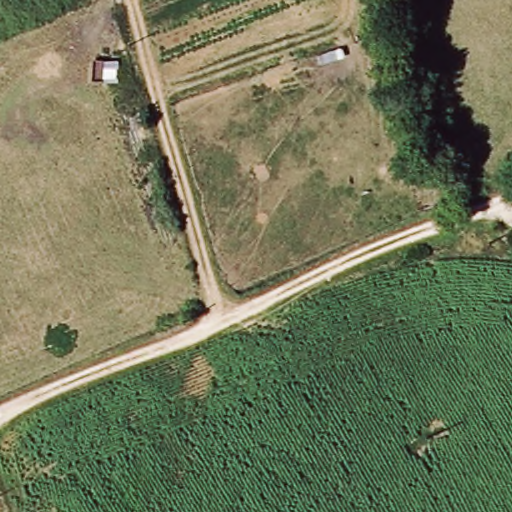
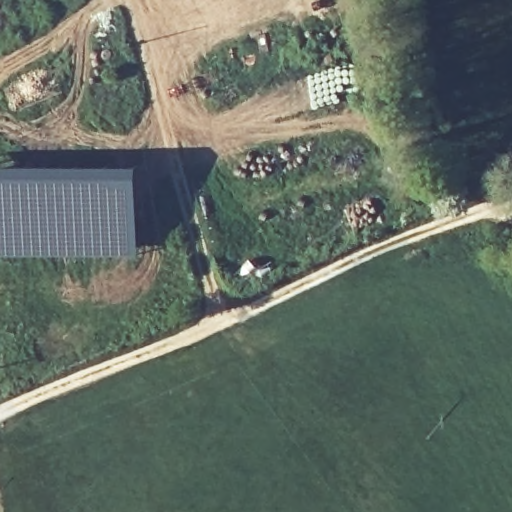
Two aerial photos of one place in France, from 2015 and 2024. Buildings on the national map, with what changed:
demolished [(19,30),(5,0),(84,0),(19,30)]
new [(141,252),(0,252),(0,165),(140,165),(141,252)]

